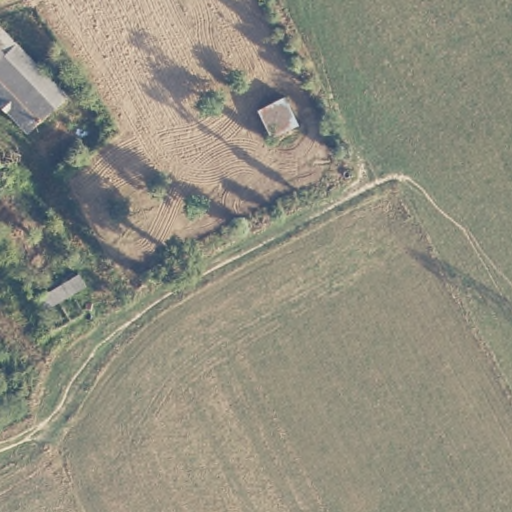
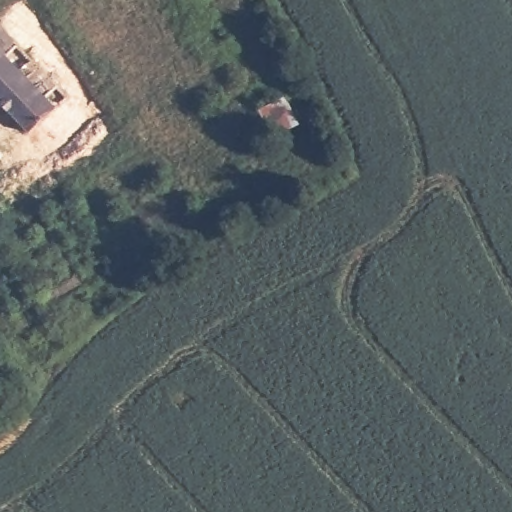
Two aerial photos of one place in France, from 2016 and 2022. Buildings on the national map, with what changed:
unchanged [(29,132),(0,99),(0,23),(1,22),(19,41),(69,95),(29,132)]
unchanged [(299,116),(270,129),(259,107),(285,95),(299,116)]
unchanged [(46,307),(39,296),(82,272),(87,286),(46,307)]

